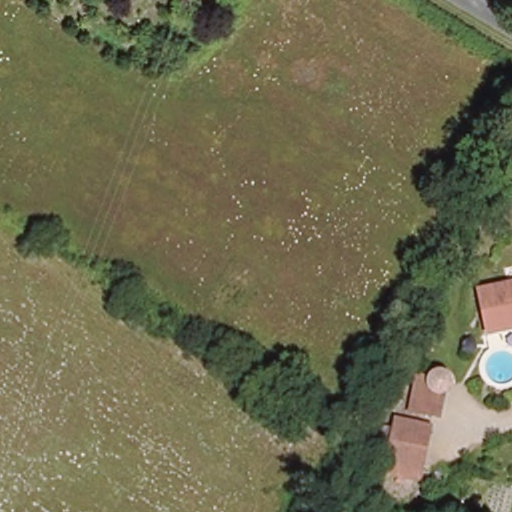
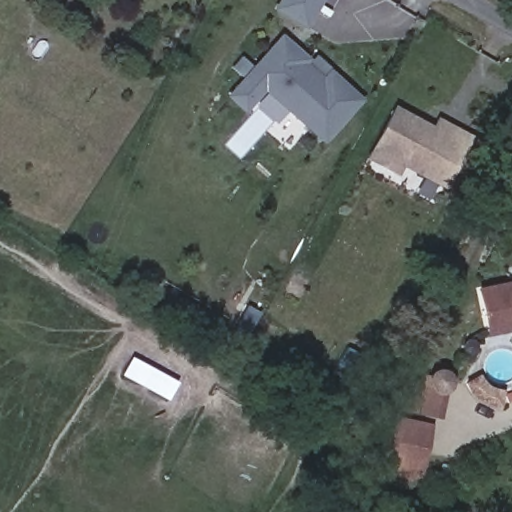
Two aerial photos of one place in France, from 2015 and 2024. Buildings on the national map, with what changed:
new [(275,6),(279,0),(323,0),(306,29),(275,6)]
new [(277,124),(255,104),(245,114),(226,97),(243,78),(232,68),(241,57),(252,67),(282,34),(322,69),(326,65),(365,101),(324,145),(287,112),(277,124)]
new [(395,105),(432,124),(435,119),(470,142),(442,186),(403,167),(398,177),(365,160),(395,105)]
unchanged [(508,263),(512,262),(512,273),(508,263)]
unchanged [(486,329),(472,288),(512,281),(512,324),(486,329)]
unchanged [(421,380),(442,384),(438,414),(416,412),(421,380)]
unchanged [(388,472),(396,422),(426,425),(418,475),(388,472)]

